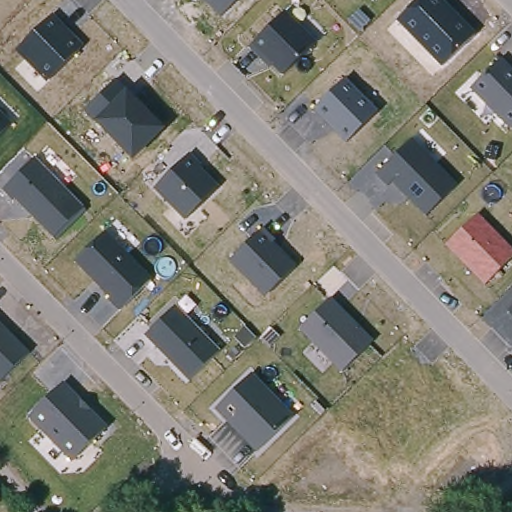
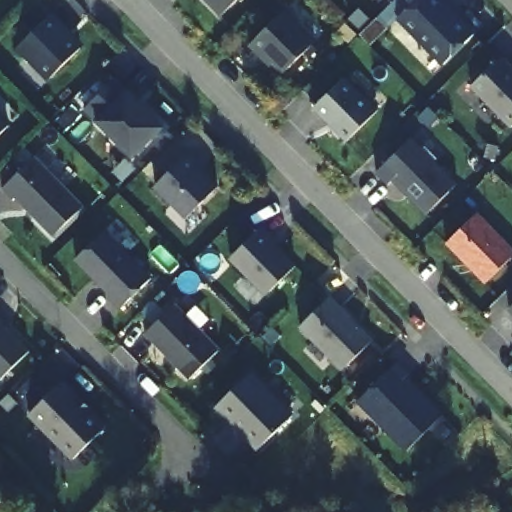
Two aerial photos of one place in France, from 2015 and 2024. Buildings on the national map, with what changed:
unchanged [(218,15),(203,0),(234,0),(218,15)]
unchanged [(477,32),(440,66),(397,21),(418,0),(444,0),(477,32)]
unchanged [(244,39),(280,5),(314,40),(279,75),(244,39)]
unchanged [(8,46),(47,9),(82,42),(45,81),(8,46)]
unchanged [(499,55),(512,69),(512,123),(507,128),(467,86),(499,55)]
unchanged [(310,107),(342,76),(376,109),(344,139),(310,107)]
unchanged [(84,114),(119,80),(165,126),(130,160),(84,114)]
unchanged [(9,120),(0,128),(0,112),(9,120)]
unchanged [(387,177),(382,183),(369,167),(405,132),(454,180),(420,212),(387,177)]
unchanged [(147,184),(183,150),(217,184),(184,222),(147,184)]
unchanged [(50,234),(0,185),(0,183),(31,153),(81,205),(50,234)]
unchanged [(442,246),(475,213),(512,250),(480,284),(442,246)]
unchanged [(279,240),(275,245),(295,270),(264,297),(229,259),(265,225),(279,240)]
unchanged [(117,308),(70,258),(104,228),(148,278),(117,308)]
unchanged [(336,370),(290,322),(325,290),(370,338),(336,370)]
unchanged [(512,296),(512,312),(504,303),(512,296)]
unchanged [(185,378),(138,333),(171,301),(217,348),(185,378)]
unchanged [(0,376),(0,322),(27,350),(0,376)]
new [(405,451),(357,404),(398,363),(410,374),(407,377),(444,415),(405,451)]
unchanged [(252,450),(210,406),(249,372),(292,414),(252,450)]
unchanged [(68,460),(25,418),(62,382),(104,423),(68,460)]

